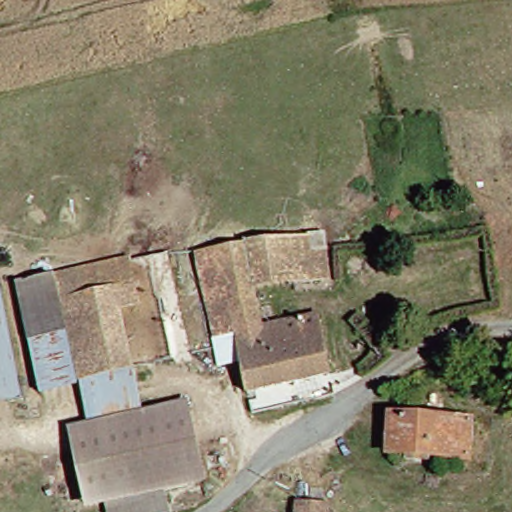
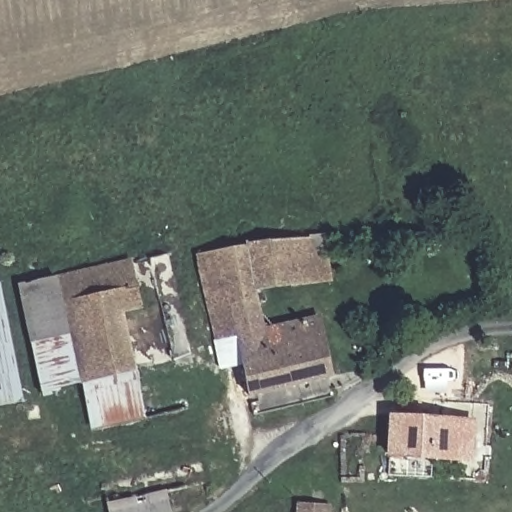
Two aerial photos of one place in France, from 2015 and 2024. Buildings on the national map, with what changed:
unchanged [(237,251),(241,242),(313,233),(323,285),(289,290),(287,280),(246,285),(251,316),(261,316),(265,329),(324,321),(334,382),(252,397),(246,366),(224,369),(200,255),(237,251)]
unchanged [(136,262),(144,302),(126,306),(76,315),(68,274),(136,262)]
unchanged [(68,274),(76,315),(86,375),(49,384),(45,385),(22,285),(51,278),(68,274)]
unchanged [(76,315),(126,306),(136,361),(86,375),(76,315)]
unchanged [(0,405),(0,323),(16,402),(0,405)]
unchanged [(136,361),(143,413),(95,421),(86,375),(136,361)]
demolished [(143,413),(197,406),(210,481),(109,500),(95,421),(143,413)]
unchanged [(473,464),(391,459),(394,415),(475,420),(473,464)]
unchanged [(110,500),(167,490),(169,497),(173,512),(112,512),(112,511),(110,500)]
unchanged [(328,512),(298,512),(298,509),(328,510),(328,512)]

